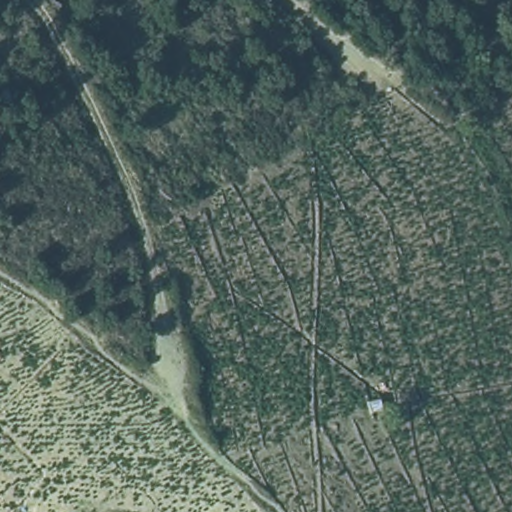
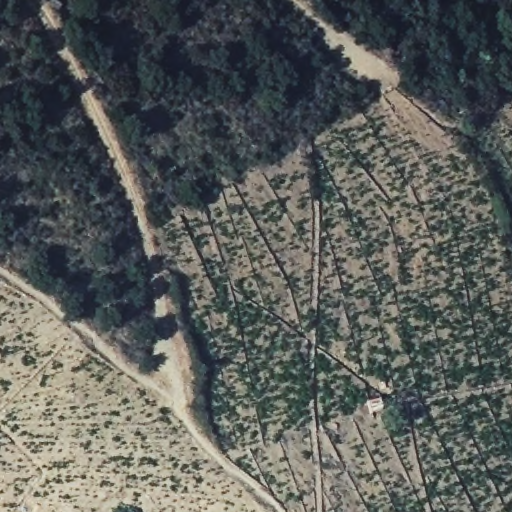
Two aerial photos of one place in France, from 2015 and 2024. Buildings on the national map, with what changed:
unchanged [(385,395),(385,410),(369,411),(369,395),(385,395)]

